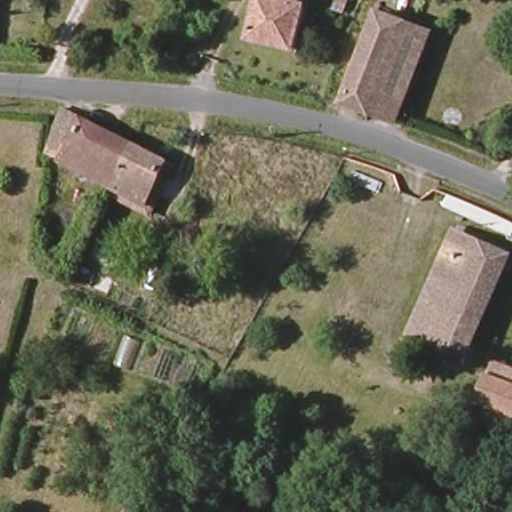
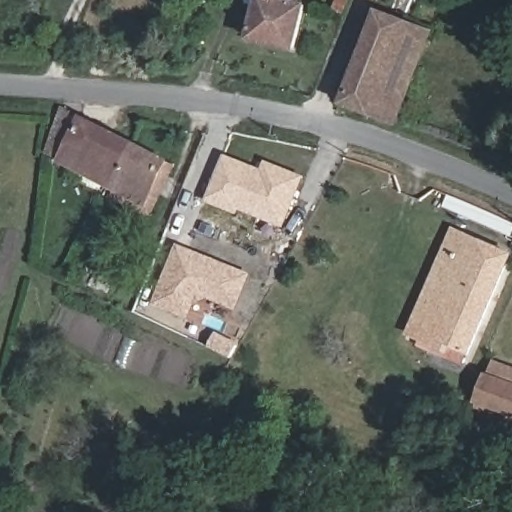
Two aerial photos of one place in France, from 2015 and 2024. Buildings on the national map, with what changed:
unchanged [(302,10),(286,51),(244,34),(259,0),(278,0),(302,10)]
unchanged [(371,119),(343,108),(380,10),(407,23),(371,119)]
unchanged [(371,119),(407,23),(430,33),(395,128),(371,119)]
unchanged [(46,155),(50,131),(51,125),(63,126),(65,115),(81,116),(79,123),(131,146),(112,186),(46,155)]
unchanged [(166,163),(147,202),(112,186),(131,146),(166,163)]
new [(225,154),(262,168),(265,160),(305,174),(284,228),(240,210),(239,215),(206,201),(225,154)]
new [(486,213),(512,226),(512,228),(509,236),(443,206),(447,196),(486,213)]
unchanged [(447,343),(444,350),(411,338),(406,336),(451,237),(459,240),(509,259),(466,349),(447,343)]
new [(252,273),(236,310),(199,295),(188,319),(153,305),(177,243),(252,273)]
unchanged [(492,371),(500,353),(512,358),(512,415),(480,401),(492,371)]

